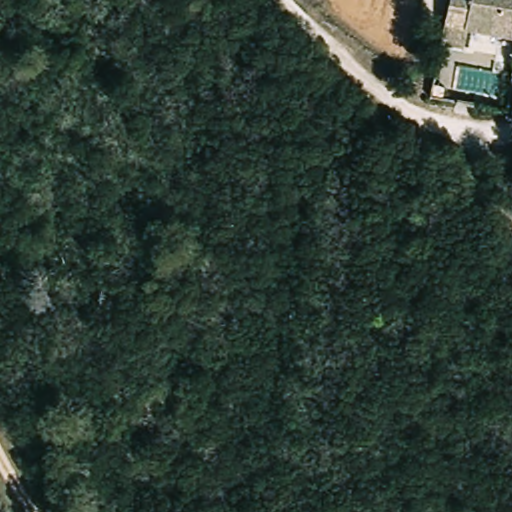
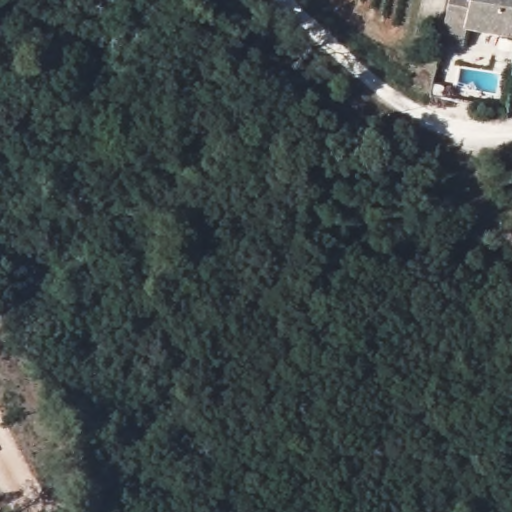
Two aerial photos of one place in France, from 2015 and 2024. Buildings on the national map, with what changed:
unchanged [(466,31),(464,47),(439,44),(443,0),(469,0),(466,31)]
unchanged [(469,0),(512,0),(512,36),(466,31),(469,0)]

